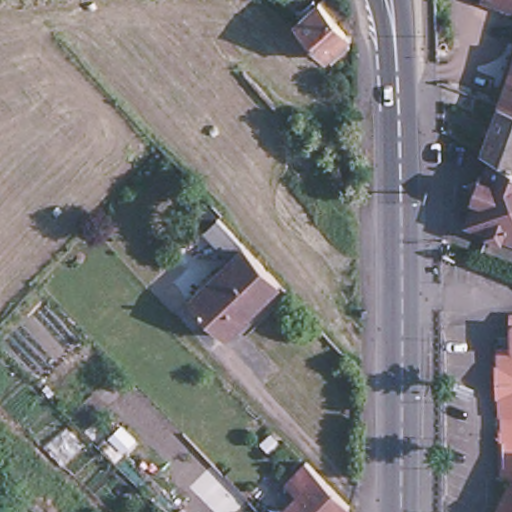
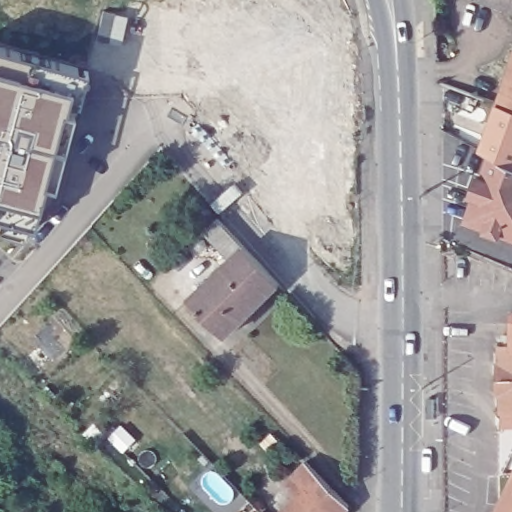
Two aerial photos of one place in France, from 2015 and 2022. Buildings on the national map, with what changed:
unchanged [(512,6),(495,0),(512,0),(512,6)]
demolished [(320,1),(348,34),(345,38),(349,43),(331,58),(327,53),(324,57),(295,22),(320,1)]
new [(55,185),(44,183),(35,221),(0,213),(0,43),(87,65),(55,185)]
unchanged [(512,104),(498,99),(512,61),(512,104)]
unchanged [(469,215),(477,191),(472,189),(479,170),(484,172),(492,149),(482,144),(498,99),(512,104),(512,230),(505,227),(503,229),(490,225),(491,222),(469,215)]
unchanged [(190,298),(230,258),(204,230),(218,217),(218,218),(243,246),(279,284),(225,335),(190,298)]
unchanged [(498,395),(497,364),(500,364),(500,346),(512,346),(512,425),(506,425),(501,425),(501,423),(500,413),(500,394),(498,395)]
unchanged [(292,483),(311,462),(355,507),(350,512),(267,512),(265,510),(292,483)]
unchanged [(512,512),(496,512),(512,478),(512,512)]

